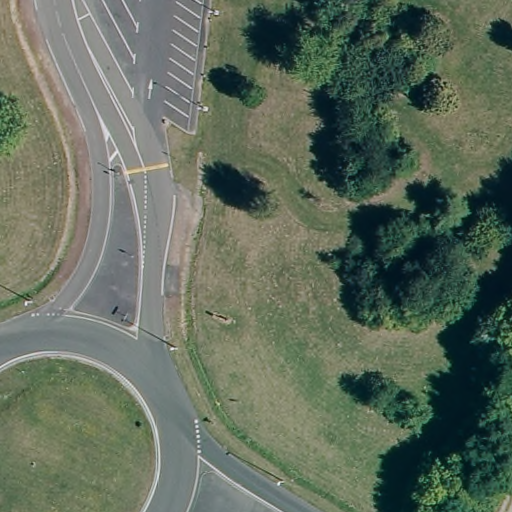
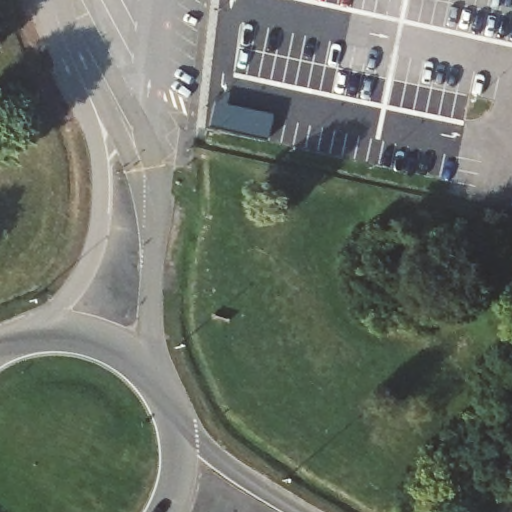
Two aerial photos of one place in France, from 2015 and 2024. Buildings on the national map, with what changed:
new [(209,129),(213,103),(272,114),(267,139),(209,129)]

